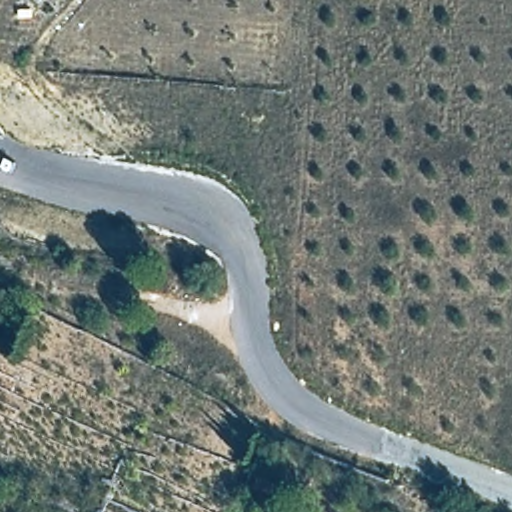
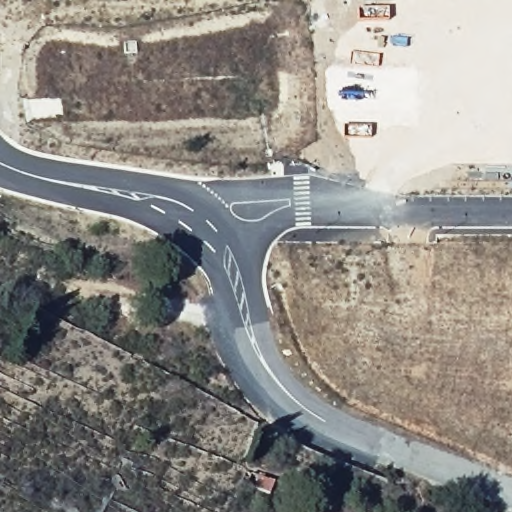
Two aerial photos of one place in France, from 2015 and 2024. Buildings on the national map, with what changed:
unchanged [(253,471),(269,477),(264,491),(248,486),(253,471)]

